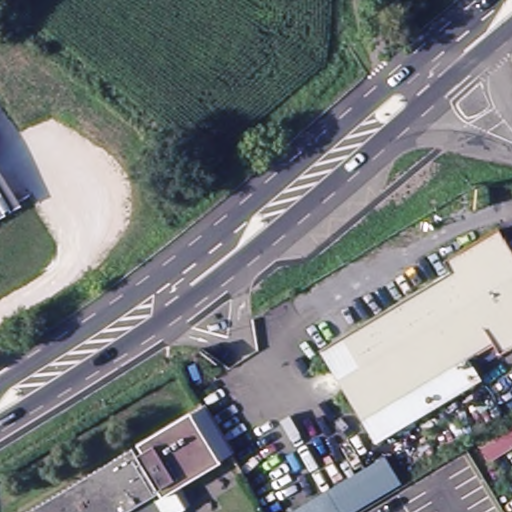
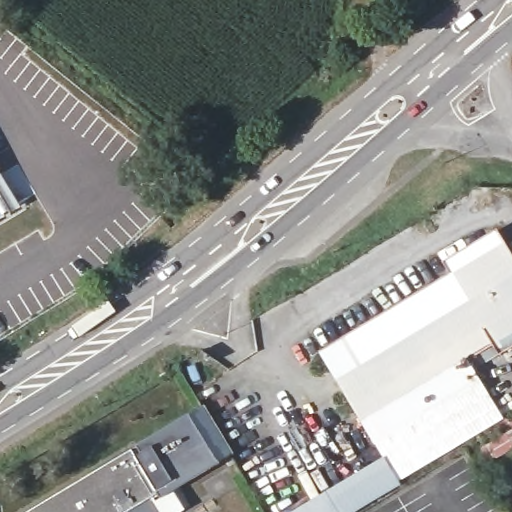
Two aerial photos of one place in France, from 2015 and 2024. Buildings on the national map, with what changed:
unchanged [(12,202),(0,209),(0,182),(12,202)]
unchanged [(375,446),(321,353),(451,277),(442,265),(497,233),(512,259),(512,348),(498,356),(491,344),(473,355),(487,377),(375,446)]
new [(383,457),(376,445),(482,380),(504,419),(397,482),(383,457)]
unchanged [(227,455),(157,497),(154,493),(150,496),(160,512),(20,512),(199,405),(227,455)]
unchanged [(398,483),(351,512),(291,512),(383,457),(398,483)]

